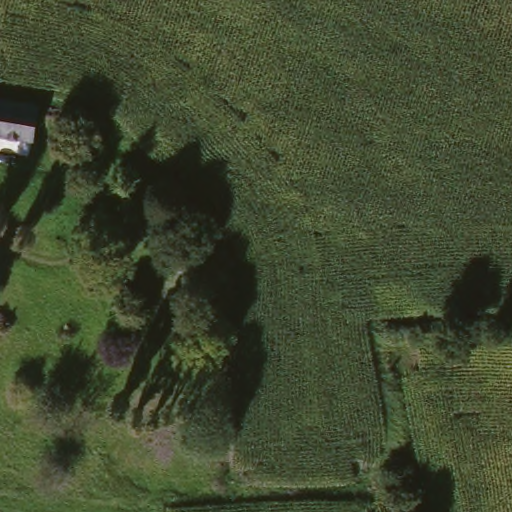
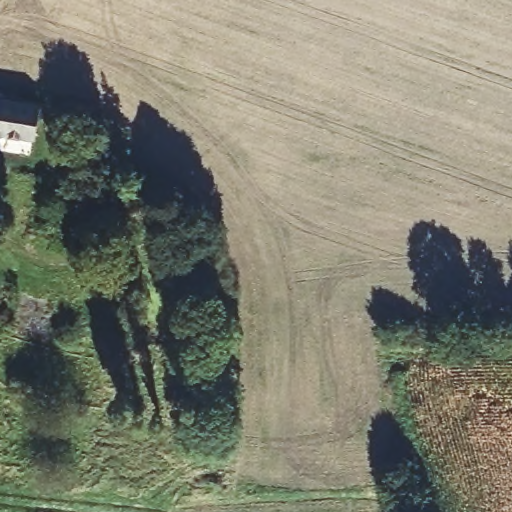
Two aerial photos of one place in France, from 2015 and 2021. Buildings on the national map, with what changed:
unchanged [(47,132),(0,126),(0,90),(52,98),(47,132)]

